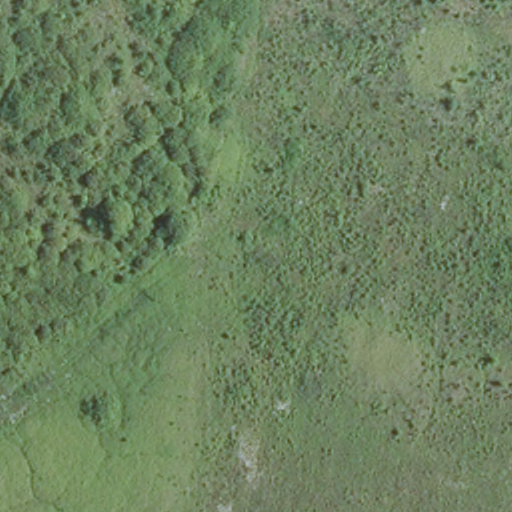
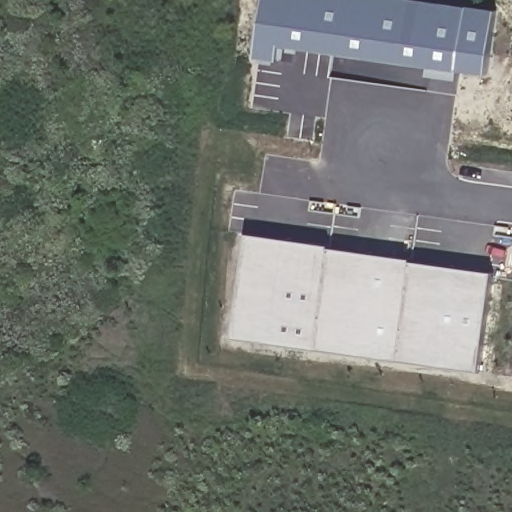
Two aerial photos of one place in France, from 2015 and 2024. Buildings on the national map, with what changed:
new [(466,4),(496,9),(486,72),(457,68),(452,68),(452,75),(423,72),(422,64),(278,45),(276,59),(252,57),(260,0),(432,0),(466,4)]
new [(251,229),(335,241),(335,244),(417,255),(417,258),(497,270),(483,370),(235,336),(251,229)]

